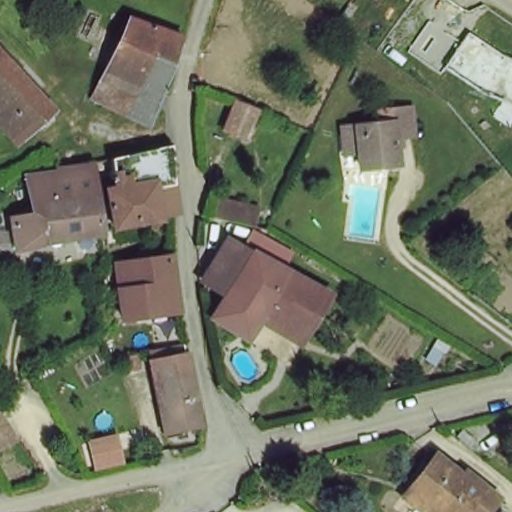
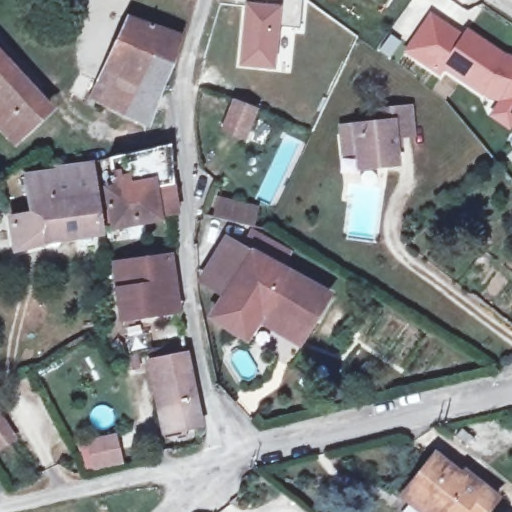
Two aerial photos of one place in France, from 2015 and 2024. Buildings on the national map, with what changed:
new [(252,0),(301,0),(299,27),(279,24),(275,70),(238,67),(244,4),(250,3),(252,0)]
new [(482,96),(443,70),(440,76),(403,52),(431,10),(463,33),(467,28),(505,54),(512,56),(512,127),(510,130),(490,116),(499,101),(482,96)]
unchanged [(127,12),(178,36),(161,92),(105,63),(127,12)]
unchanged [(53,104),(14,137),(0,123),(0,42),(53,104)]
unchanged [(151,127),(93,92),(105,63),(161,92),(151,127)]
unchanged [(220,133),(237,97),(262,106),(244,142),(220,133)]
unchanged [(355,167),(354,151),(340,152),(338,128),(367,126),(365,111),(398,109),(401,135),(389,136),(391,165),(355,167)]
unchanged [(95,194),(97,228),(61,233),(60,242),(12,247),(11,217),(28,216),(24,172),(23,156),(55,149),(55,154),(55,155),(55,167),(90,163),(93,162),(95,194)]
unchanged [(172,173),(172,197),(174,217),(150,221),(145,155),(175,149),(172,173)]
unchanged [(110,229),(106,193),(95,194),(93,162),(145,155),(150,221),(110,229)]
unchanged [(303,334),(265,311),(226,287),(220,296),(219,295),(199,286),(230,234),(333,292),(303,334)]
unchanged [(103,290),(95,265),(175,246),(189,302),(111,319),(103,290)]
unchanged [(250,334),(208,309),(219,295),(220,296),(226,287),(265,311),(250,334)]
demolished [(342,364),(330,353),(367,313),(380,324),(342,364)]
unchanged [(184,346),(200,426),(159,434),(142,354),(184,346)]
unchanged [(20,436),(0,448),(0,407),(20,436)]
new [(118,436),(124,462),(90,471),(83,445),(118,436)]
unchanged [(457,467),(462,461),(490,490),(473,512),(457,512),(455,510),(454,512),(430,512),(401,485),(436,445),(457,467)]

